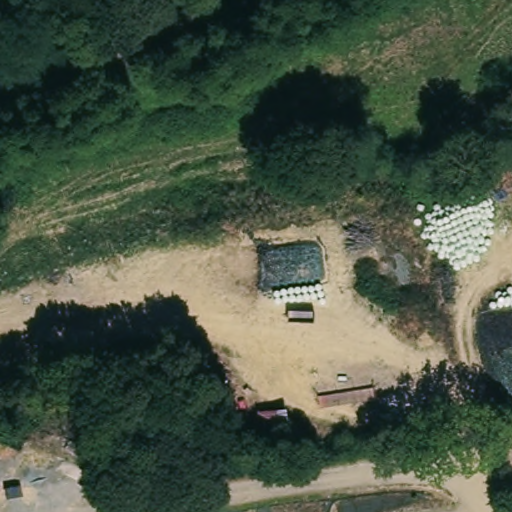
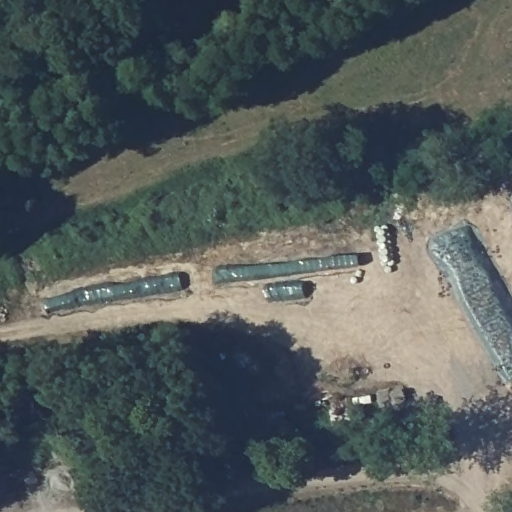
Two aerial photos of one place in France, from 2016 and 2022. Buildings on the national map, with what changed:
unchanged [(266,445),(261,412),(292,407),(294,442),(266,445)]

